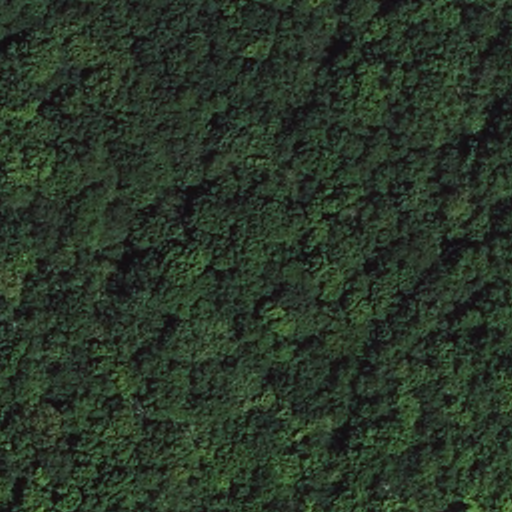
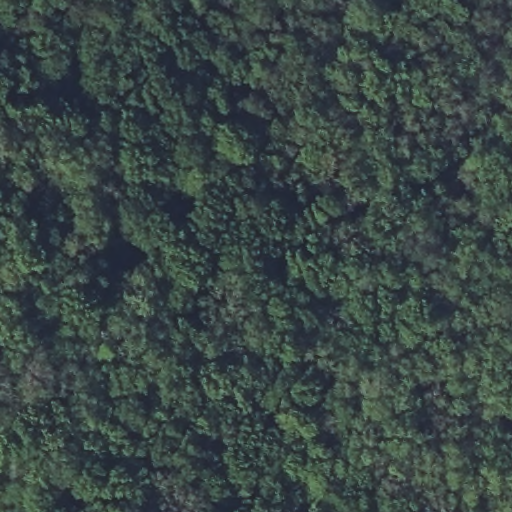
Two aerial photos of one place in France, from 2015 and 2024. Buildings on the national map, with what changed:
[]

